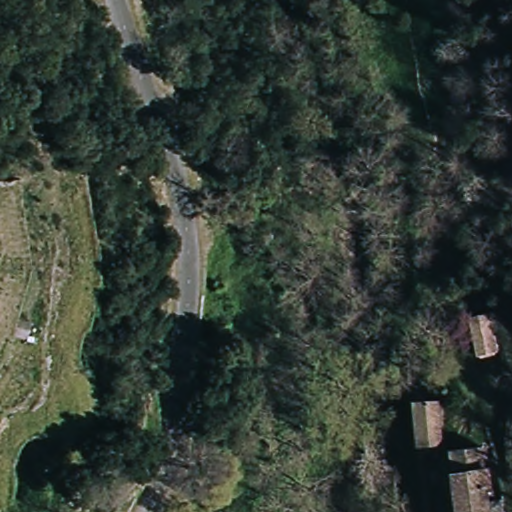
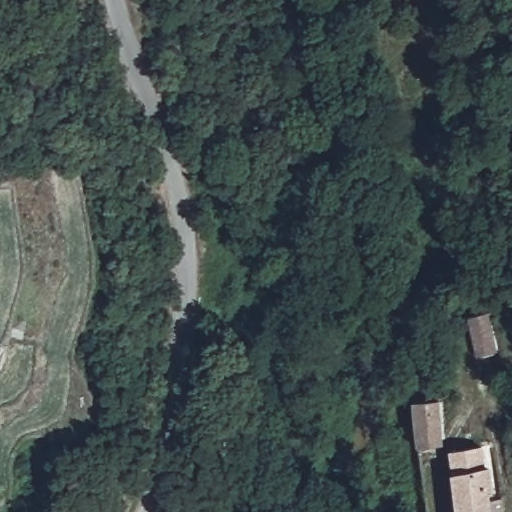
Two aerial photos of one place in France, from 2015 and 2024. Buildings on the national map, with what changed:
unchanged [(508,354),(479,359),(471,311),(500,307),(508,354)]
unchanged [(412,405),(439,400),(445,442),(417,446),(412,405)]
unchanged [(440,453),(472,447),(476,473),(485,472),(487,490),(480,491),(482,505),(495,502),(497,512),(451,512),(440,453)]

